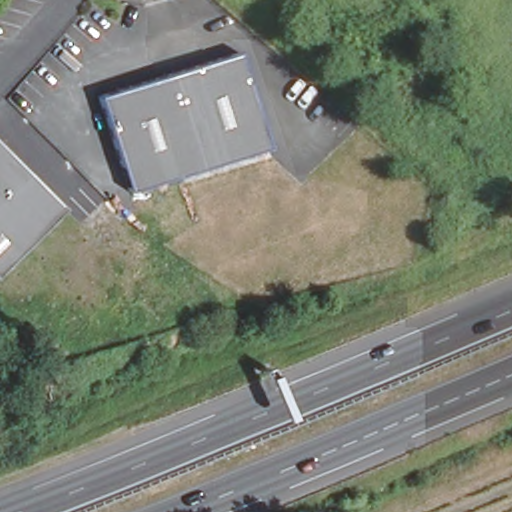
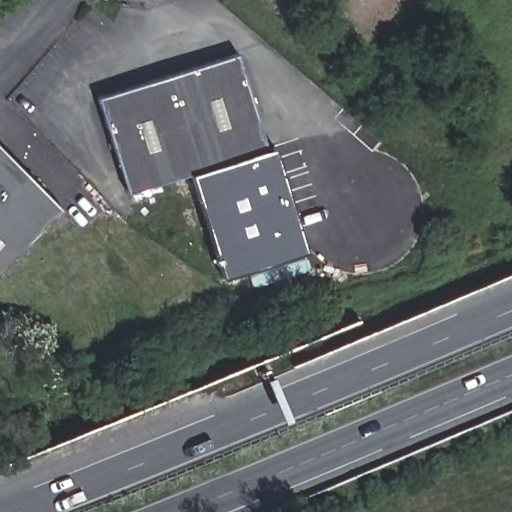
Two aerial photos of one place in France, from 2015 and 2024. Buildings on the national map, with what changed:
unchanged [(270,140),(134,196),(96,104),(233,48),(270,140)]
new [(268,141),(273,146),(305,251),(220,276),(190,173),(268,141)]
unchanged [(0,276),(0,150),(62,204),(0,276)]

